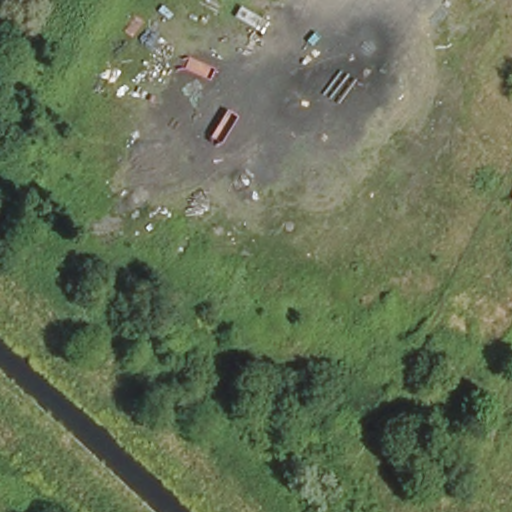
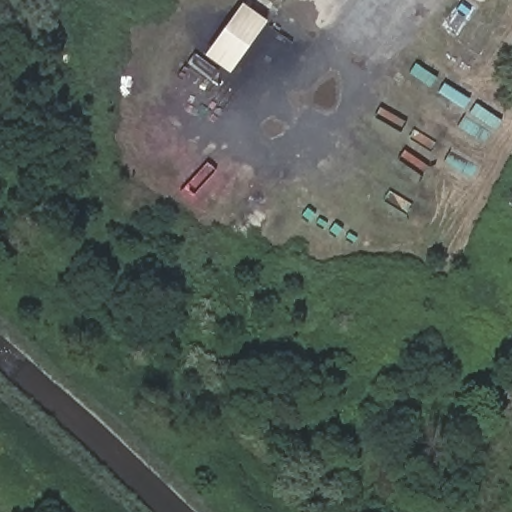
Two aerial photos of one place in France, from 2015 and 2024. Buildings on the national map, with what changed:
unchanged [(281,1),(279,0),(282,0),(281,1)]
new [(205,56),(242,3),(267,21),(230,73),(205,56)]

